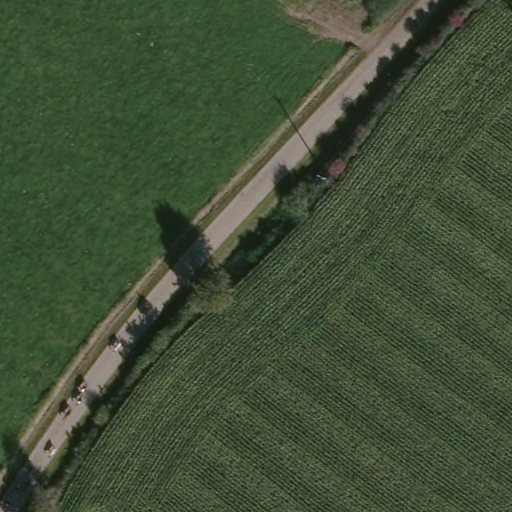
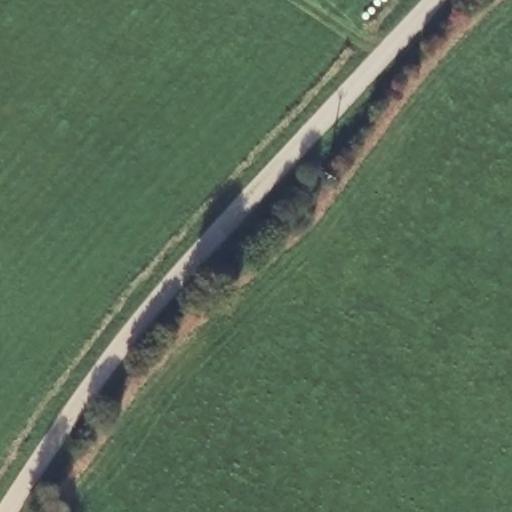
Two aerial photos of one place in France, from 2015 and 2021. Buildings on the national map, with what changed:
[]

